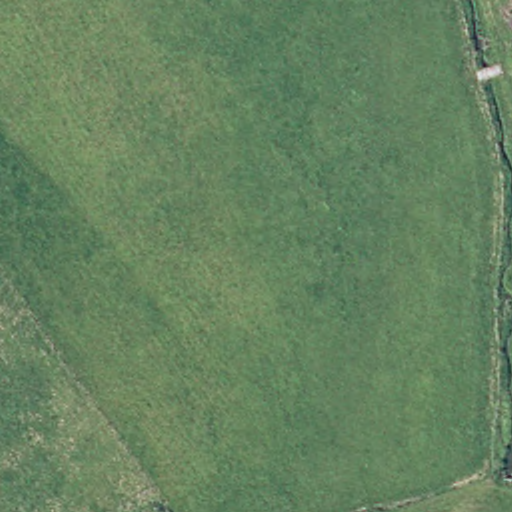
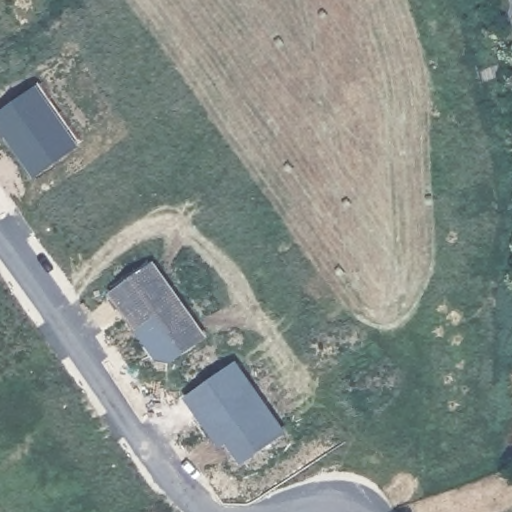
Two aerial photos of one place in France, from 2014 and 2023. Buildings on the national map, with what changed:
new [(75,145),(35,175),(22,156),(23,151),(18,144),(15,146),(5,134),(3,135),(0,131),(0,114),(35,88),(75,145)]
new [(206,337),(173,360),(159,358),(128,314),(113,294),(113,293),(153,263),(206,337)]
new [(199,416),(186,398),(235,363),(284,432),(243,462),(229,441),(221,446),(199,416)]

